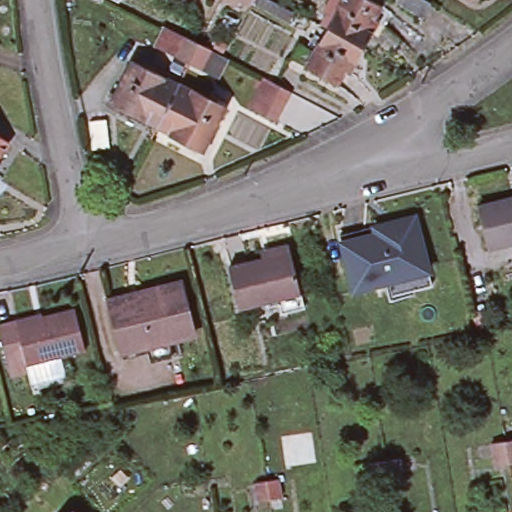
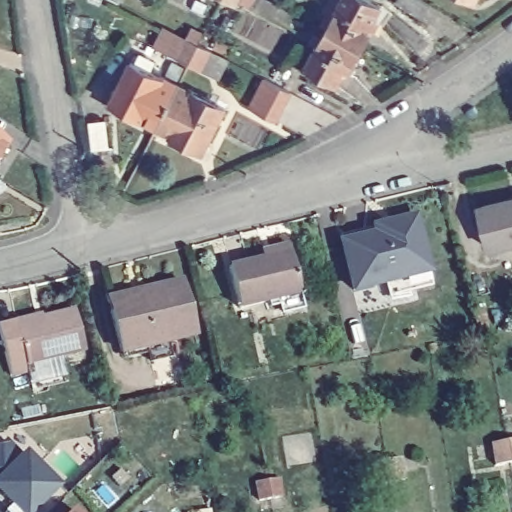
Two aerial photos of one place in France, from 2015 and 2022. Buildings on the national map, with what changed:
unchanged [(225,0),(252,0),(246,11),(225,0)]
unchanged [(335,0),(367,0),(375,4),(367,17),(372,19),(357,46),(321,27),(335,0)]
unchanged [(405,0),(428,0),(423,9),(405,0)]
unchanged [(231,59),(220,79),(152,44),(164,24),(231,59)]
unchanged [(357,46),(344,73),(339,70),(331,85),(300,67),(321,27),(357,46)]
unchanged [(108,101),(130,59),(177,83),(155,126),(108,101)]
unchanged [(250,110),(257,95),(265,80),(290,93),(284,108),(276,122),(250,110)]
unchanged [(225,107),(202,150),(155,126),(177,83),(225,107)]
unchanged [(0,153),(0,137),(7,141),(0,153)]
unchanged [(512,202),(512,246),(494,250),(484,209),(512,202)]
unchanged [(390,296),(387,281),(354,290),(342,241),(340,234),(362,228),(415,215),(427,264),(432,285),(390,296)]
unchanged [(238,307),(228,266),(262,257),(260,250),(288,243),(290,251),(300,292),(238,307)]
unchanged [(193,334),(120,351),(109,310),(107,299),(136,292),(180,282),(193,334)]
unchanged [(9,370),(0,333),(0,319),(14,315),(40,309),(40,311),(74,303),(84,345),(60,351),(66,376),(32,385),(27,365),(9,370)]
unchanged [(10,464),(0,454),(0,448),(13,435),(27,449),(10,464)]
unchanged [(490,442),(504,440),(512,439),(512,461),(508,462),(494,464),(490,442)]
new [(0,446),(2,446),(0,448),(0,446)]
new [(27,449),(60,485),(67,494),(50,512),(4,512),(5,509),(0,504),(0,454),(10,464),(27,449)]
unchanged [(370,462),(384,460),(398,458),(402,479),(387,482),(374,484),(370,462)]
unchanged [(255,481),(265,480),(277,478),(280,496),(267,498),(257,500),(255,481)]
unchanged [(71,510),(73,512),(69,512),(71,510)]

